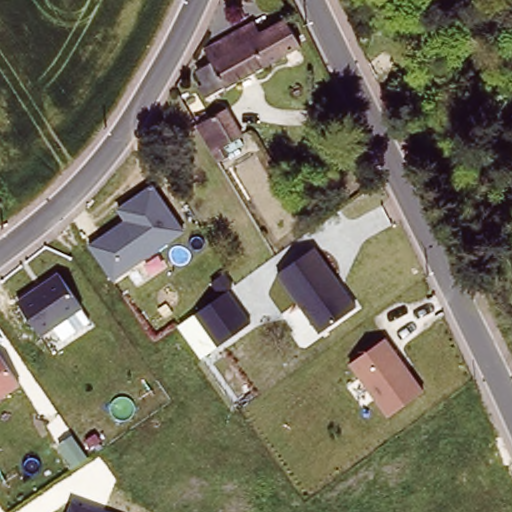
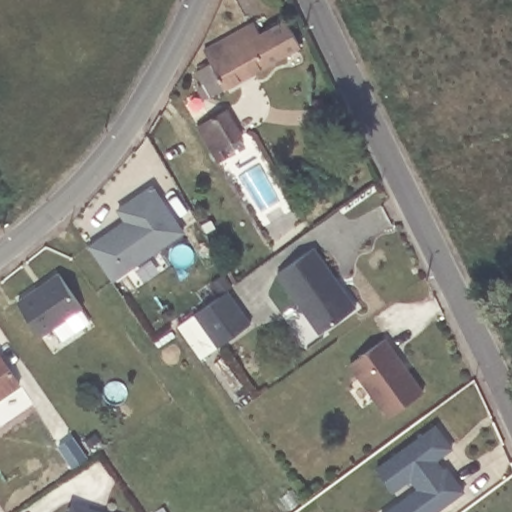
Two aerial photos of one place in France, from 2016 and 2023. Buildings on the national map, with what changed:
unchanged [(266,32),(290,18),(305,44),(231,87),(230,85),(218,92),(204,69),(216,62),(209,49),(258,20),(266,32)]
unchanged [(227,147),(222,140),(212,145),(197,120),(226,102),(242,130),(240,131),(245,139),(227,147)]
unchanged [(89,242),(125,222),(118,210),(157,186),(185,234),(113,280),(89,242)]
unchanged [(314,248),(356,307),(318,333),(275,274),(314,248)]
unchanged [(17,302),(62,273),(84,307),(41,335),(17,302)]
unchanged [(221,345),(201,358),(177,325),(195,313),(230,291),(252,323),(221,345)]
unchanged [(387,338),(425,391),(388,418),(349,365),(387,338)]
unchanged [(0,399),(0,353),(20,387),(0,399)]
new [(418,491),(411,481),(405,485),(389,462),(436,427),(452,451),(432,465),(440,475),(447,470),(464,493),(439,512),(389,512),(418,491)]
unchanged [(98,512),(67,512),(70,502),(98,512)]

